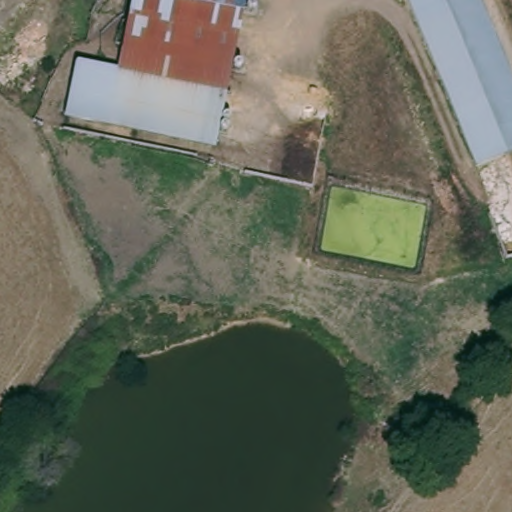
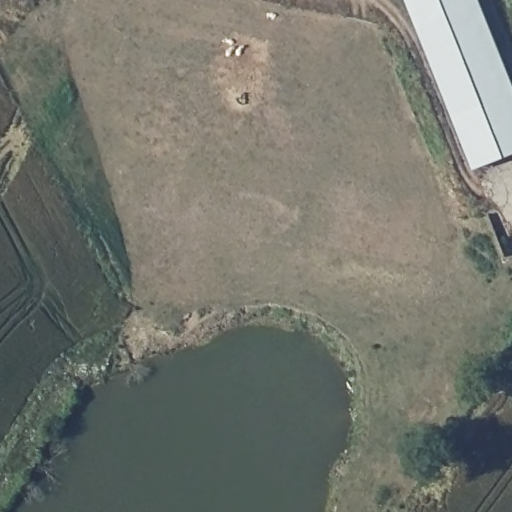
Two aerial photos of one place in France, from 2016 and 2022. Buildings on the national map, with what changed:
demolished [(221,147),(75,120),(85,66),(121,73),(135,0),(248,0),(221,147)]
unchanged [(512,76),(512,151),(489,161),(414,0),(477,0),(512,76)]

